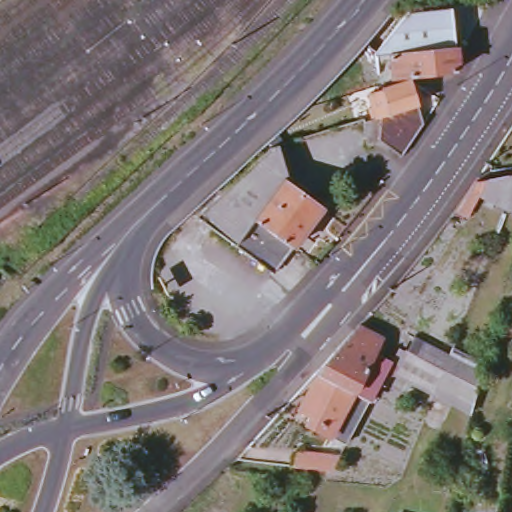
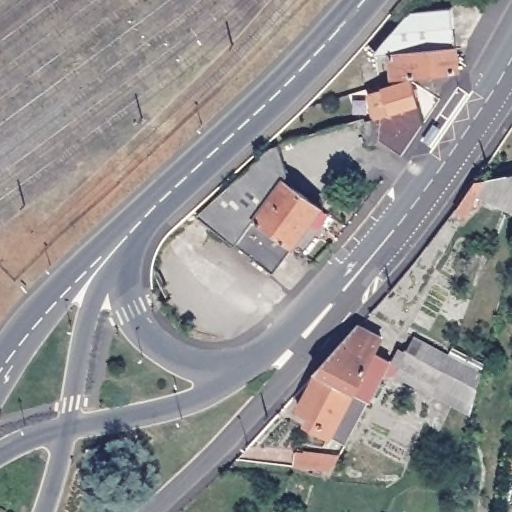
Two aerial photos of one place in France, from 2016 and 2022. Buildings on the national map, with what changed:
unchanged [(392,53),(377,54),(377,52),(410,10),(452,6),(457,45),(458,69),(393,75),(392,53)]
unchanged [(380,89),(412,79),(419,103),(377,116),(369,92),(380,89)]
unchanged [(368,146),(365,133),(366,119),(377,116),(419,103),(424,125),(403,157),(375,143),(368,146)]
unchanged [(323,208),(275,273),(200,219),(232,182),(267,147),(282,143),(292,184),(323,208)]
unchanged [(474,181),(512,176),(512,212),(482,201),(468,222),(452,214),(474,181)]
unchanged [(334,383),(318,375),(315,374),(359,326),(382,338),(368,364),(383,372),(370,401),(353,393),(334,383)]
unchanged [(422,345),(450,357),(436,394),(403,379),(397,376),(407,355),(416,359),(422,345)]
unchanged [(436,394),(450,357),(483,370),(475,400),(472,409),(436,394)]
unchanged [(334,383),(353,393),(370,401),(347,445),(307,425),(311,417),(299,411),(318,375),(334,383)]
unchanged [(340,458),(333,471),(292,466),(295,455),(305,457),(305,454),(340,458)]

